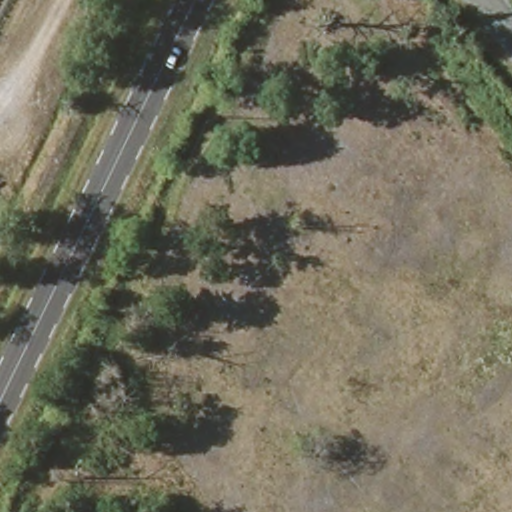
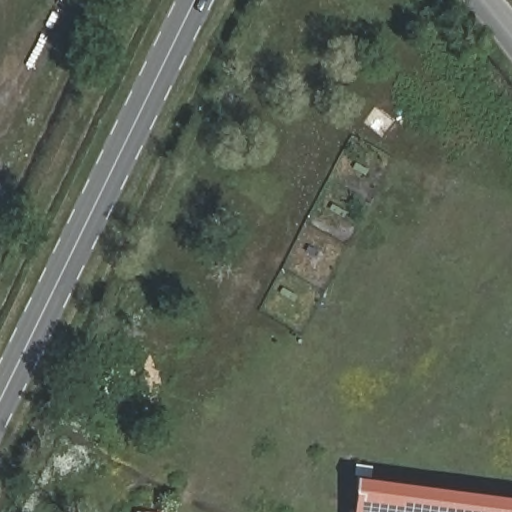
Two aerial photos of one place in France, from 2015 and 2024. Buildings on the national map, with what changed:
new [(512,512),(359,512),(365,477),(512,496),(512,512)]

